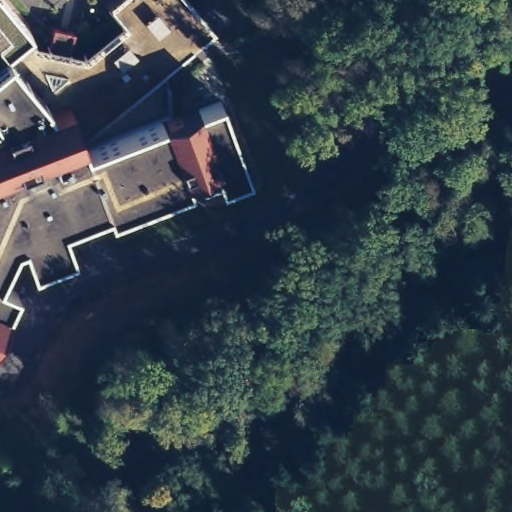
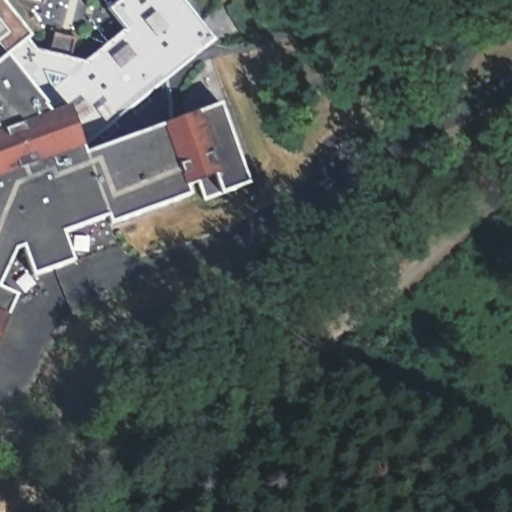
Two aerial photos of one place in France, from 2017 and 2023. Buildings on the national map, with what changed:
unchanged [(84,152),(222,103),(249,183),(222,192),(217,172),(186,184),(190,194),(110,221),(107,215),(61,232),(70,260),(32,271),(22,246),(16,248),(0,282),(0,1),(30,37),(36,50),(83,62),(125,28),(109,7),(118,0),(184,0),(216,39),(84,152)]
unchanged [(0,324),(0,287),(14,294),(0,324)]

